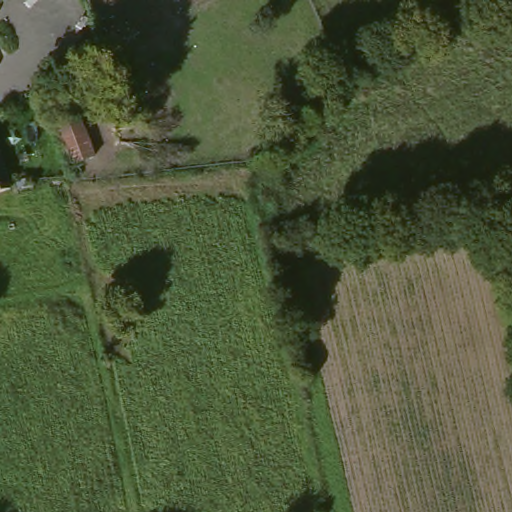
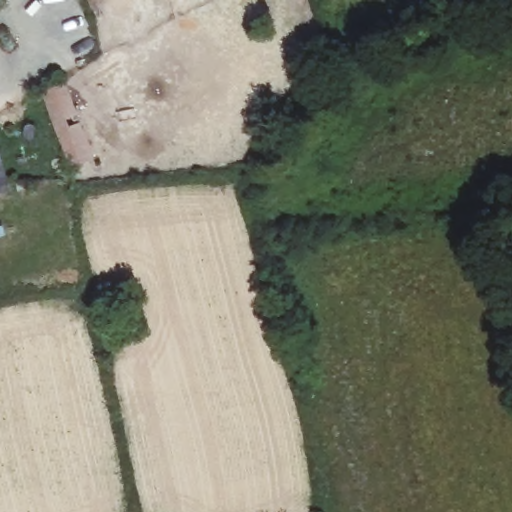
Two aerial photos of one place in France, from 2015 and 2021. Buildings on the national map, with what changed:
unchanged [(58,99),(86,92),(99,158),(74,163),(58,99)]
unchanged [(7,172),(7,181),(0,183),(0,148),(7,172)]

